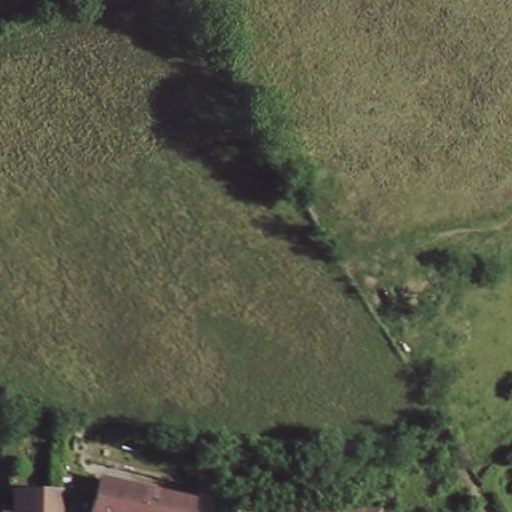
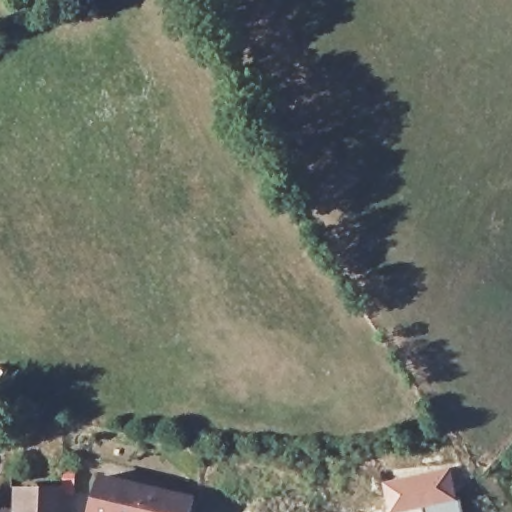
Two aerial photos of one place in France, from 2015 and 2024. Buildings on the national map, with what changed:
new [(460,500),(424,509),(409,512),(388,512),(381,480),(451,465),(460,500)]
unchanged [(193,498),(190,512),(99,512),(104,479),(193,498)]
demolished [(382,512),(275,512),(380,497),(382,512)]
unchanged [(51,500),(63,501),(63,512),(34,512),(35,500),(51,500)]
new [(460,500),(462,512),(424,512),(424,509),(460,500)]

